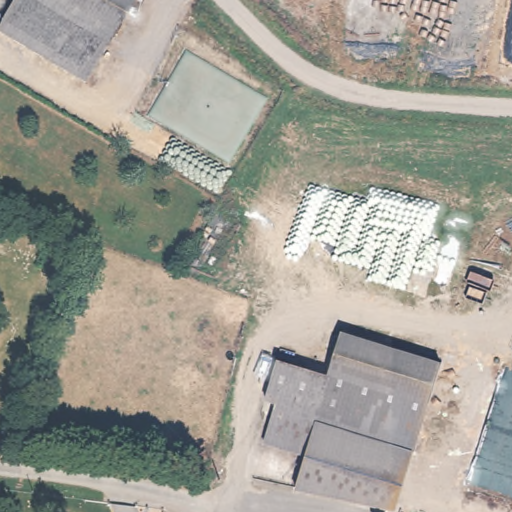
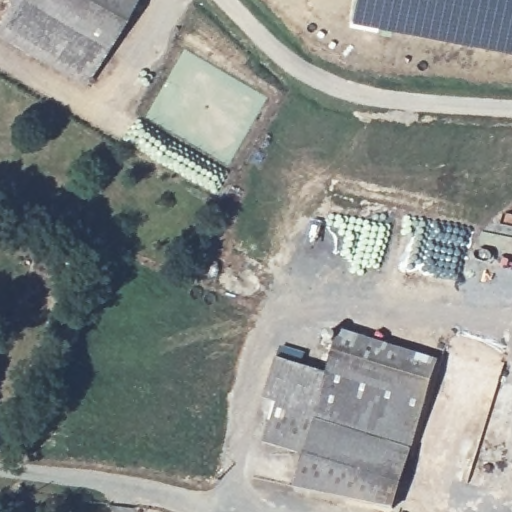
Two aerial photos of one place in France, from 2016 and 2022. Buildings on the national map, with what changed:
unchanged [(0,32),(0,27),(18,0),(135,0),(82,84),(0,32)]
new [(354,0),(512,0),(512,51),(350,21),(354,0)]
unchanged [(441,365),(405,475),(305,440),(327,378),(343,332),(441,365)]
unchanged [(301,438),(293,457),(292,457),(259,445),(273,405),(262,400),(277,361),(327,378),(305,440),(301,438)]
unchanged [(305,440),(405,475),(392,512),(293,488),(305,440)]

